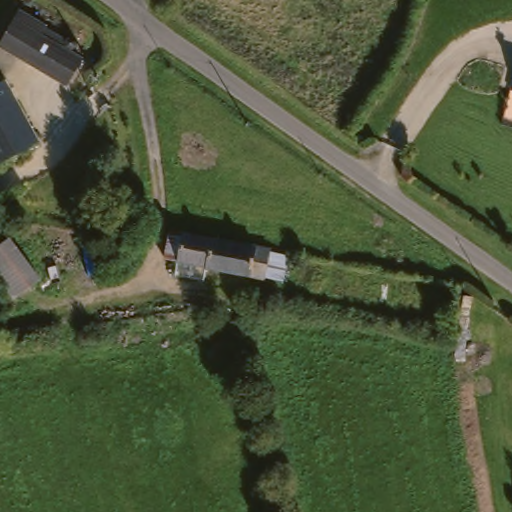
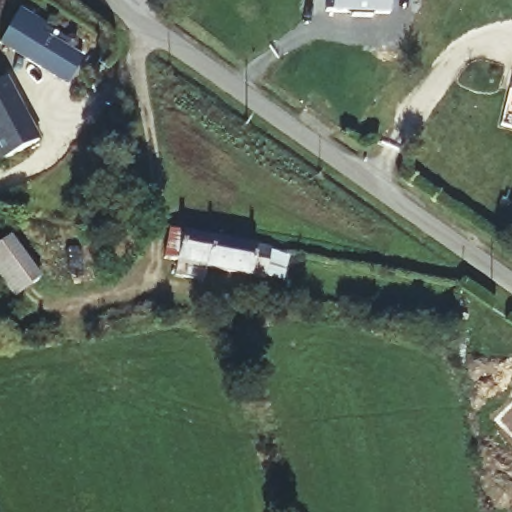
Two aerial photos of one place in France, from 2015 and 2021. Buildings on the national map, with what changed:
unchanged [(66,80),(27,51),(2,32),(26,0),(33,0),(54,15),(44,28),(82,57),(66,80)]
new [(392,0),(392,12),(375,12),(375,17),(354,16),(354,12),(328,12),(328,0),(392,0)]
unchanged [(7,158),(0,147),(0,79),(40,137),(7,158)]
unchanged [(182,257),(164,254),(170,224),(187,227),(269,243),(265,275),(182,257)]
unchanged [(0,287),(0,234),(9,229),(45,283),(11,303),(0,287)]

